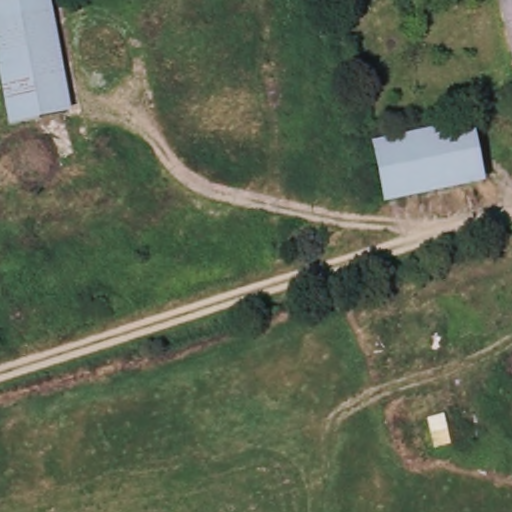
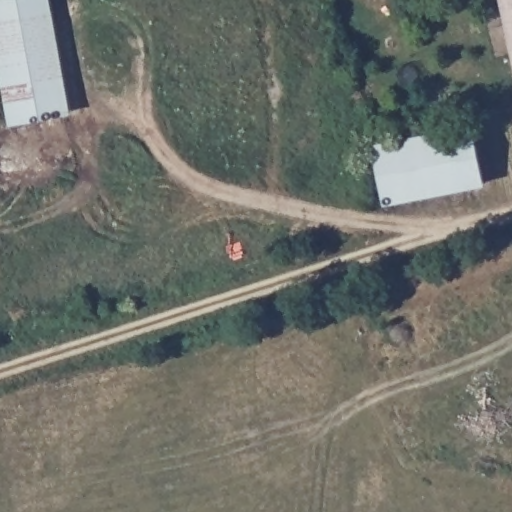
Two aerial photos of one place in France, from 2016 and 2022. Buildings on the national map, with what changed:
unchanged [(10,129),(0,63),(0,0),(48,0),(67,120),(10,129)]
unchanged [(512,0),(512,35),(504,0),(512,0)]
unchanged [(478,127),(489,185),(388,202),(380,147),(478,127)]

